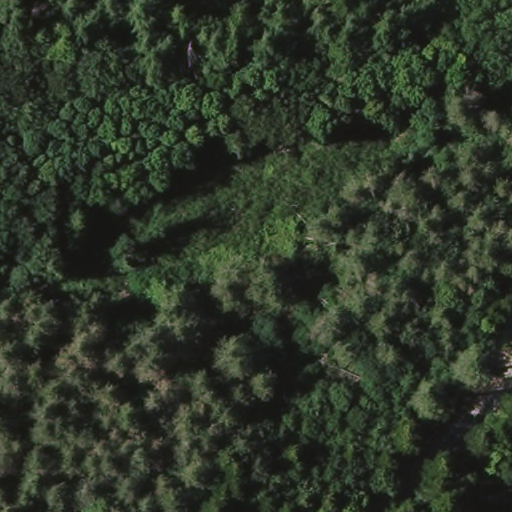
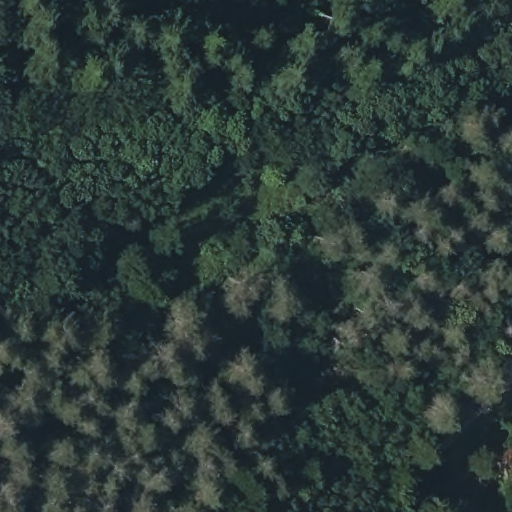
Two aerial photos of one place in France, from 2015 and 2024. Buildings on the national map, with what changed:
unchanged [(319,512),(287,512),(289,502),(319,512)]

